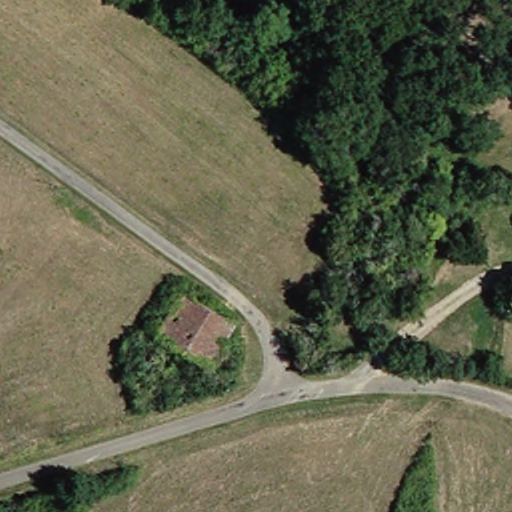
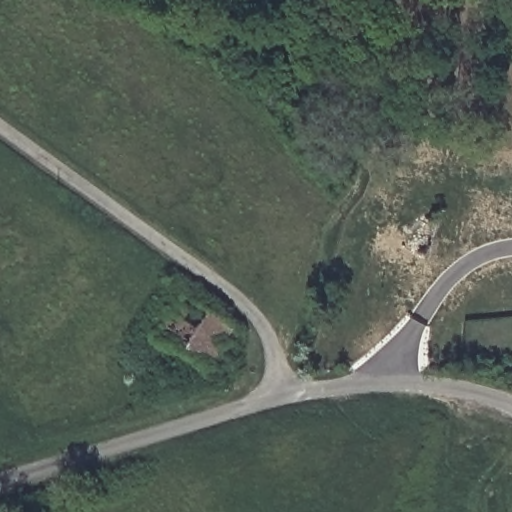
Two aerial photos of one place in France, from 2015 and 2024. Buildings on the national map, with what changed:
unchanged [(232,322),(220,340),(171,308),(182,290),(232,322)]
unchanged [(171,308),(220,340),(202,366),(155,334),(171,308)]

